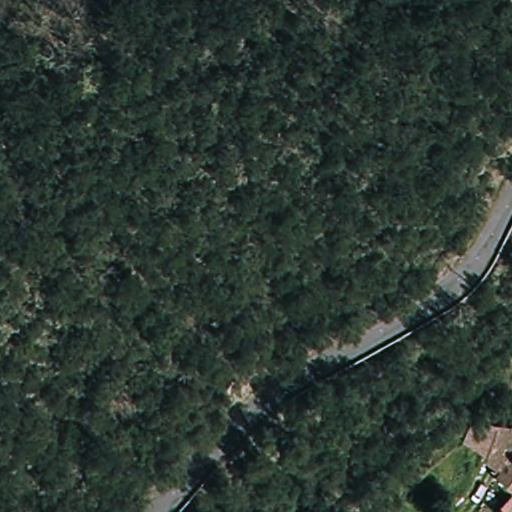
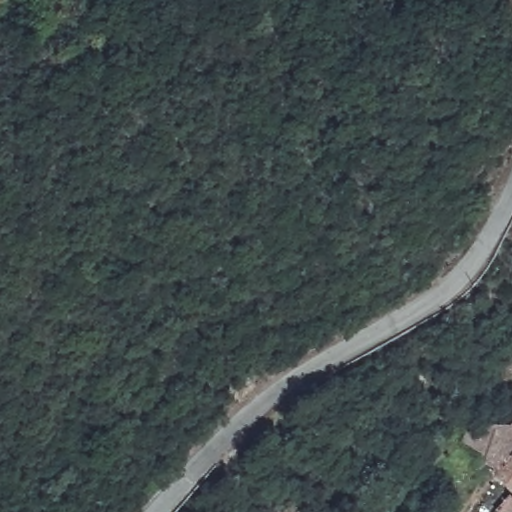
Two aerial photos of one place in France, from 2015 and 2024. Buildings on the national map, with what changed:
unchanged [(484,456),(460,443),(476,414),(495,425),(512,426),(512,489),(480,463),(484,456)]
unchanged [(512,497),(512,512),(495,512),(510,495),(512,497)]

